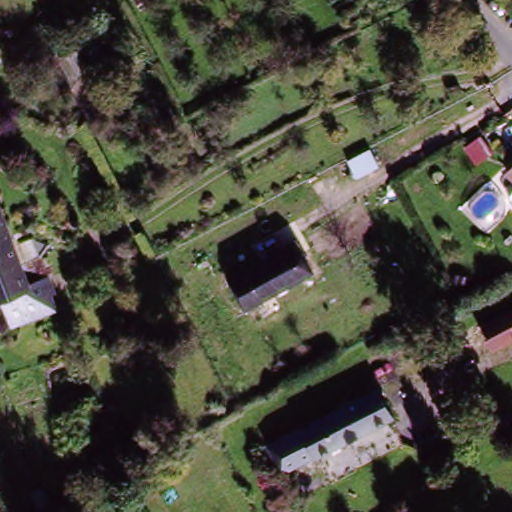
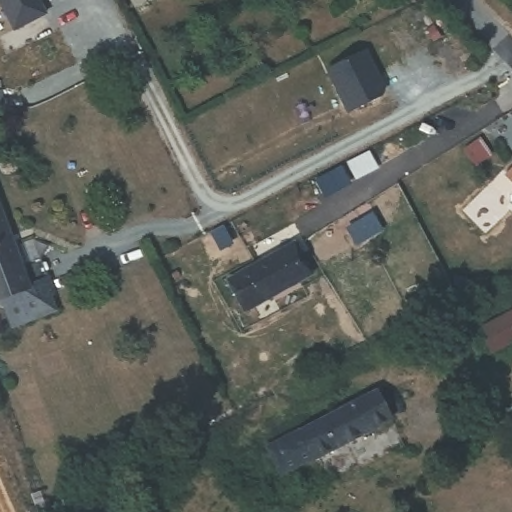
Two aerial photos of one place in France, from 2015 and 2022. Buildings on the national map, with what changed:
new [(47,14),(14,31),(0,4),(0,0),(41,0),(40,0),(47,14)]
new [(365,50),(385,85),(383,95),(348,114),(325,69),(365,50)]
unchanged [(0,157),(1,157),(49,279),(35,284),(0,193),(0,157)]
unchanged [(503,177),(512,166),(512,185),(503,177)]
unchanged [(0,298),(0,193),(35,284),(6,295),(0,298)]
unchanged [(221,281),(303,239),(318,269),(236,310),(221,281)]
unchanged [(49,279),(60,308),(18,324),(6,295),(35,284),(49,279)]
unchanged [(436,348),(450,340),(512,308),(512,338),(495,347),(491,339),(458,357),(445,364),(436,348)]
unchanged [(322,456),(290,473),(275,445),(380,389),(397,419),(323,459),(322,456)]

